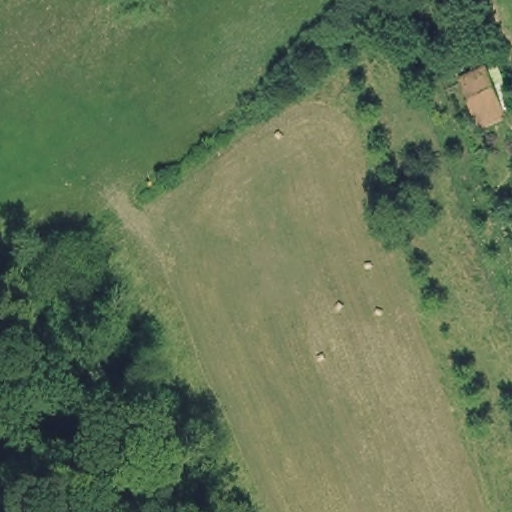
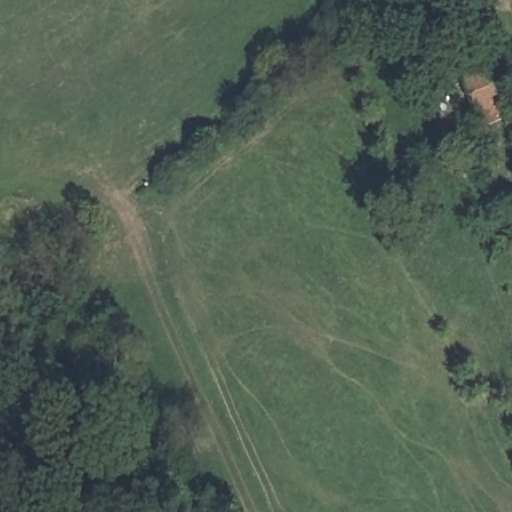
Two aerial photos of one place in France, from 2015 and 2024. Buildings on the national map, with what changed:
unchanged [(507,117),(480,127),(458,72),(488,62),(489,65),(498,62),(512,98),(512,109),(505,112),(507,117)]

